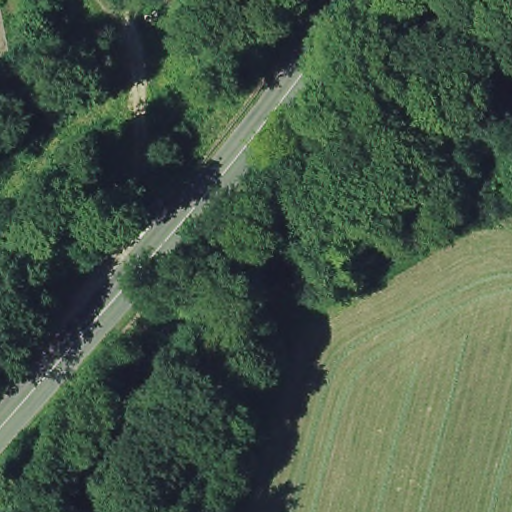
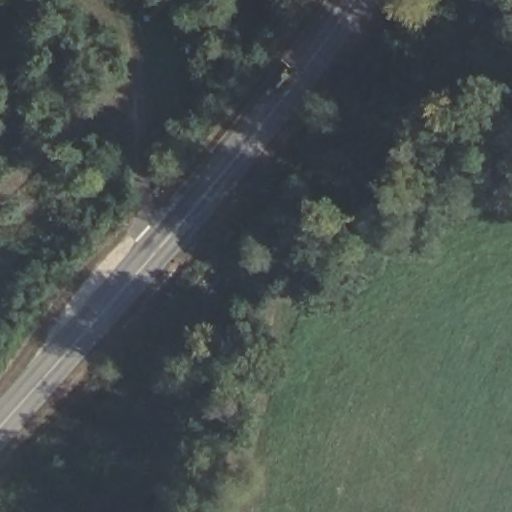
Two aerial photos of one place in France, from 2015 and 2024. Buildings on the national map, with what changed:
[]

